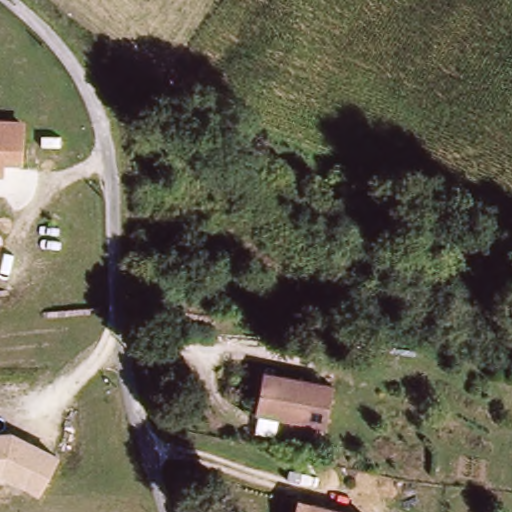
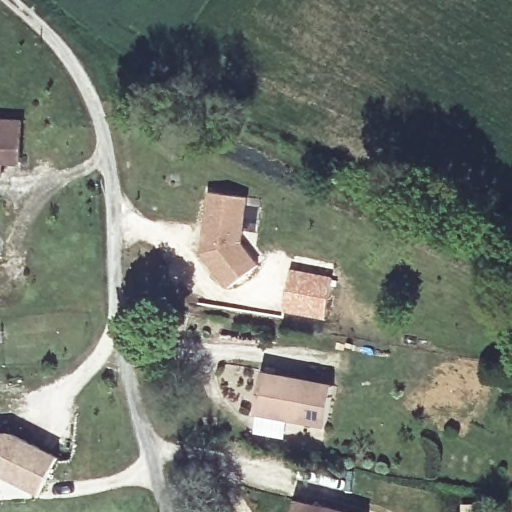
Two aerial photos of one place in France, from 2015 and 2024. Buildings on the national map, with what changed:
unchanged [(0,118),(25,120),(22,160),(4,158),(3,171),(0,171),(0,118)]
new [(248,196),(242,243),(258,264),(227,289),(200,254),(208,192),(248,196)]
new [(332,277),(324,319),(282,312),(290,269),(332,277)]
unchanged [(263,379),(334,390),(328,429),(257,418),(263,379)]
unchanged [(0,433),(16,432),(62,459),(44,493),(13,477),(6,473),(0,473),(0,433)]
unchanged [(311,509),(334,512),(298,512),(298,508),(311,509)]

